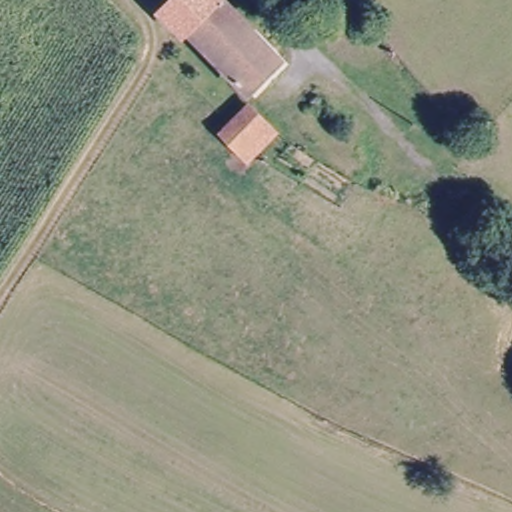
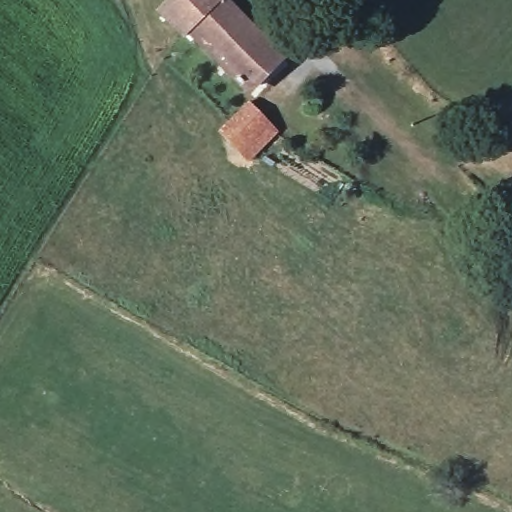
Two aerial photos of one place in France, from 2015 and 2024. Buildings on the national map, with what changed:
unchanged [(189,32),(186,33),(180,27),(161,7),(170,0),(224,0),(189,32)]
unchanged [(280,63),(270,72),(264,65),(238,88),(189,32),(224,0),(226,0),(280,63)]
unchanged [(220,137),(251,107),(270,127),(239,157),(220,137)]

